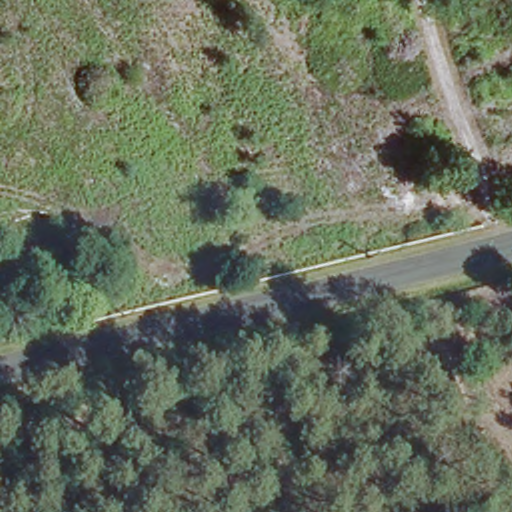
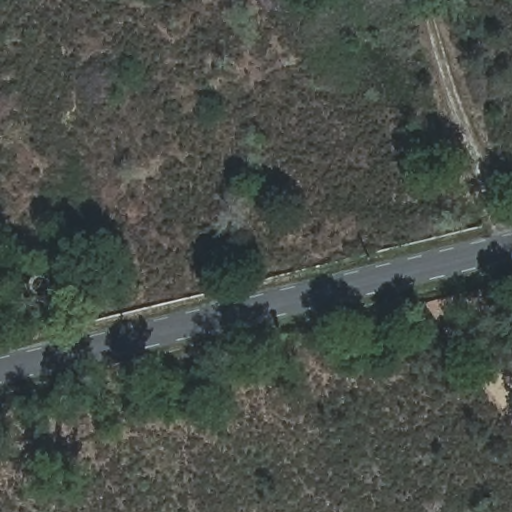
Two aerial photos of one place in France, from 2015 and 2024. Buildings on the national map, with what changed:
unchanged [(17,266),(24,261),(32,260),(41,264),(42,272),(39,283),(32,286),(22,285),(16,281),(15,273),(17,266)]

